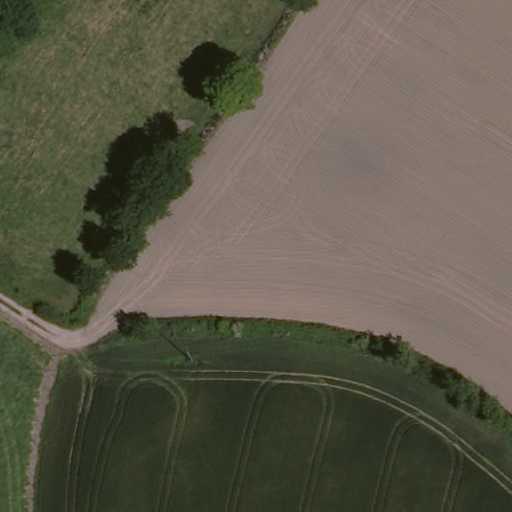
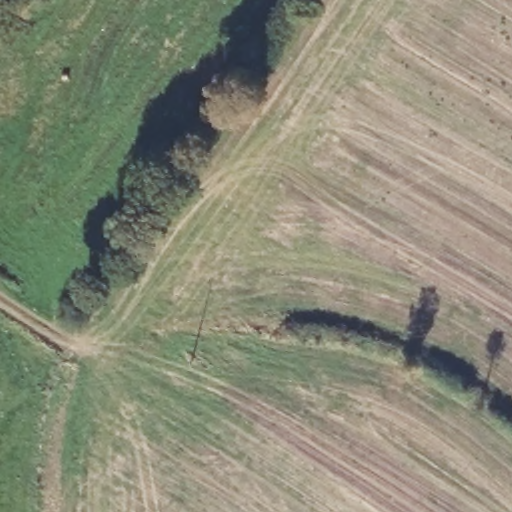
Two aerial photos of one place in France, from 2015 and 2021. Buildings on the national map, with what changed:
[]

